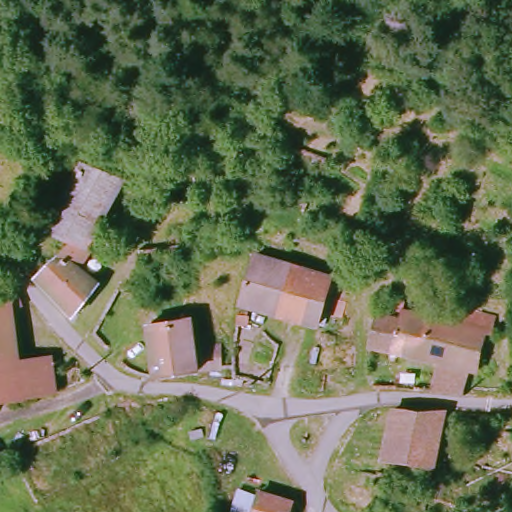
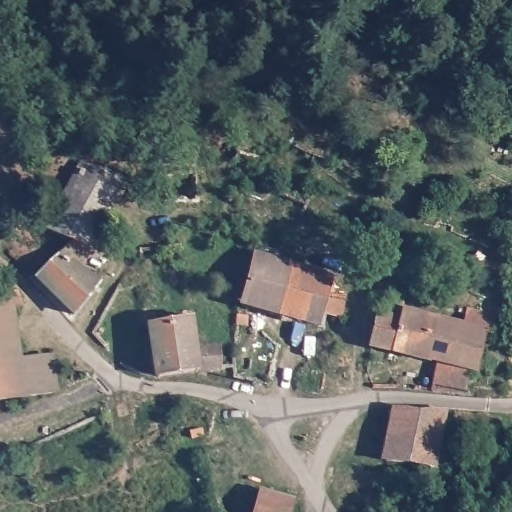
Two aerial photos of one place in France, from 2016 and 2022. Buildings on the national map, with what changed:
unchanged [(82,247),(63,239),(43,230),(72,165),(115,180),(82,247)]
unchanged [(72,267),(90,285),(68,312),(33,275),(63,239),(82,247),(72,267)]
unchanged [(237,299),(249,253),(326,275),(324,285),(315,320),(237,299)]
unchanged [(1,301),(0,297),(0,291),(8,290),(11,304),(2,306),(11,346),(14,361),(22,396),(0,399),(0,301),(1,301)]
unchanged [(380,345),(360,341),(366,317),(382,321),(386,321),(388,312),(450,323),(461,305),(489,313),(486,328),(479,328),(470,366),(465,366),(459,394),(429,392),(437,362),(379,351),(380,345)]
unchanged [(215,368),(149,378),(147,323),(175,320),(174,312),(185,310),(190,348),(215,347),(215,360),(215,368)]
unchanged [(22,396),(14,361),(41,356),(47,355),(54,389),(49,392),(22,396)]
unchanged [(427,462),(380,456),(386,408),(434,411),(427,462)]
unchanged [(288,512),(255,512),(263,490),(292,501),(288,512)]

